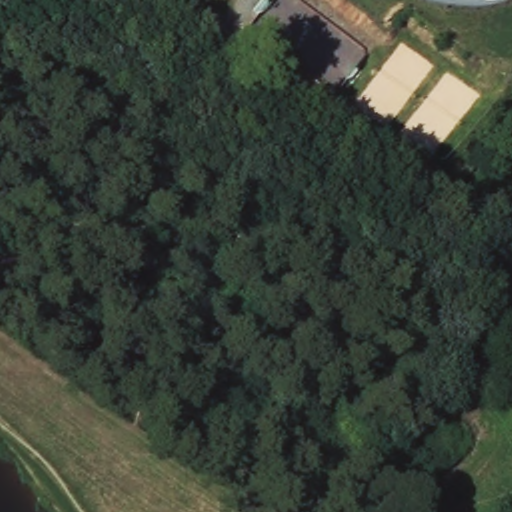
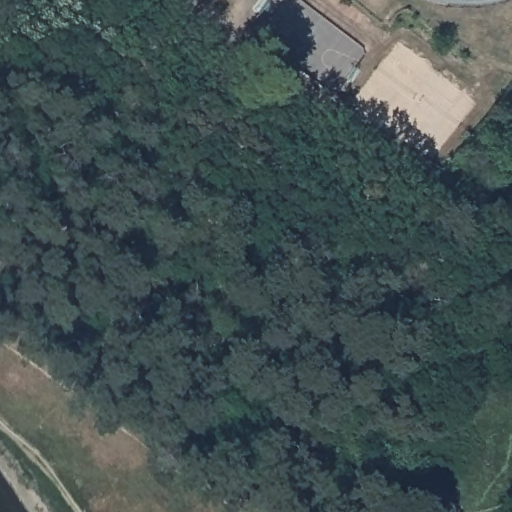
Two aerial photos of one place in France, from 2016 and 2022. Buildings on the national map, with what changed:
[]

